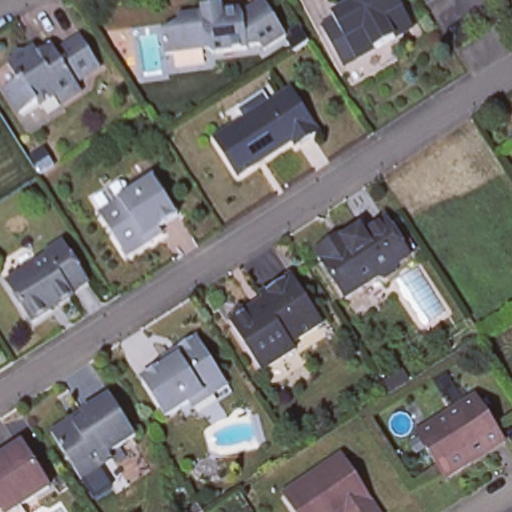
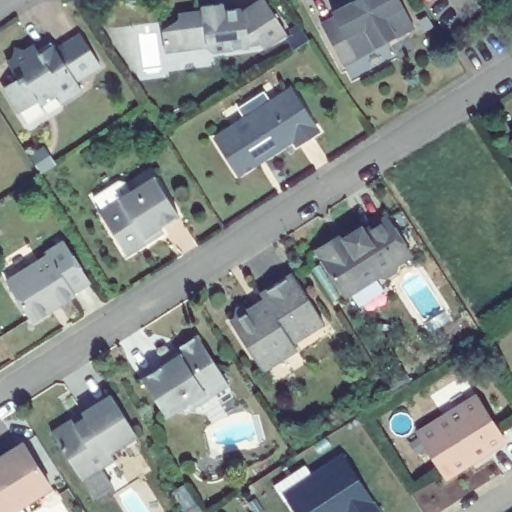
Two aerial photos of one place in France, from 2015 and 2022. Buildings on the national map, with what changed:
unchanged [(204,0),(225,0),(225,1),(237,0),(242,0),(245,3),(248,0),(273,0),(289,24),(267,39),(262,33),(250,35),(250,38),(217,44),(210,38),(168,44),(165,22),(182,11),(182,5),(205,2),(204,0)]
unchanged [(340,19),(337,14),(355,3),(356,0),(401,0),(417,26),(361,58),(347,64),(326,26),(340,19)]
unchanged [(57,43),(83,26),(101,54),(76,72),(57,43)]
unchanged [(82,81),(62,93),(57,84),(41,94),(39,91),(20,103),(7,81),(20,74),(9,55),(16,51),(18,43),(24,44),(35,38),(40,47),(55,39),(57,43),(76,72),(82,81)]
unchanged [(318,132),(297,145),(295,141),(240,177),(215,139),(231,129),(222,115),(272,84),(281,97),(291,90),(318,132)]
unchanged [(144,247),(132,254),(125,252),(100,214),(103,212),(95,200),(118,184),(129,186),(133,193),(155,178),(178,218),(170,224),(173,229),(144,247)]
unchanged [(337,236),(340,240),(362,225),(365,230),(388,215),(412,252),(397,262),(396,269),(387,275),(378,274),(347,294),(317,249),(337,236)]
unchanged [(32,259),(35,265),(62,249),(85,285),(67,297),(64,292),(35,310),(11,272),(32,259)]
unchanged [(237,312),(240,301),(250,304),(265,293),(262,288),(293,267),(325,315),(295,335),(298,340),(265,362),(233,314),(237,312)]
unchanged [(195,402),(169,418),(145,379),(183,355),(185,347),(197,339),(205,342),(232,384),(220,393),(199,408),(195,402)]
unchanged [(383,385),(396,378),(403,389),(391,397),(383,385)]
unchanged [(137,434),(110,451),(115,459),(82,479),(53,437),(75,423),(90,413),(115,398),(137,434)]
unchanged [(471,464),(447,479),(419,437),(475,399),(501,437),(505,443),(471,464)]
unchanged [(25,438),(38,459),(52,482),(3,512),(0,512),(0,453),(3,451),(15,443),(25,438)]
unchanged [(381,512),(298,512),(288,497),(285,490),(312,473),(343,453),(381,512)]

